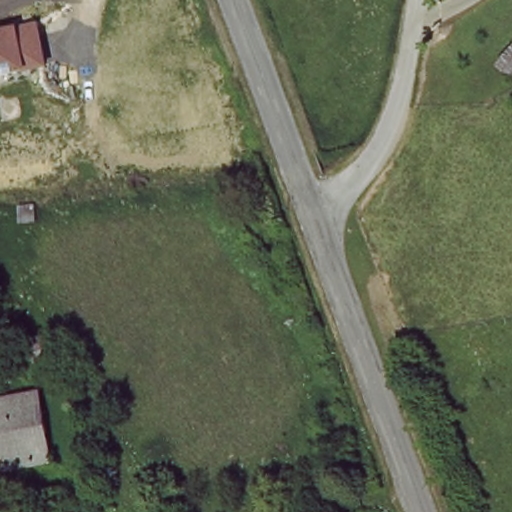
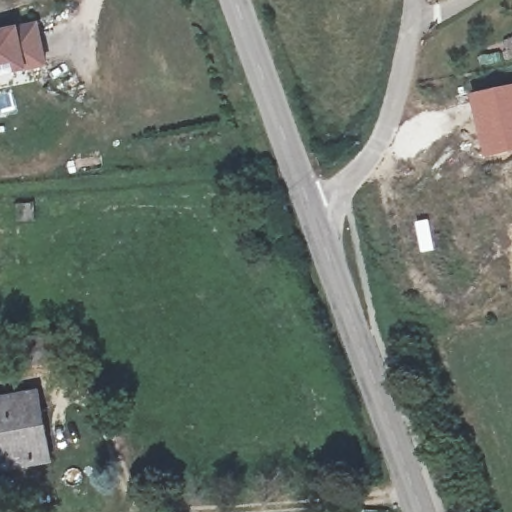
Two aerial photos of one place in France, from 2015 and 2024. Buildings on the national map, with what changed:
unchanged [(41,21),(50,68),(30,74),(0,80),(0,31),(23,25),(41,21)]
new [(512,83),(512,152),(483,157),(468,94),(512,83)]
unchanged [(33,245),(16,246),(14,225),(33,226),(33,245)]
unchanged [(13,340),(55,331),(64,365),(16,372),(13,340)]
unchanged [(0,473),(0,396),(43,388),(56,464),(0,473)]

